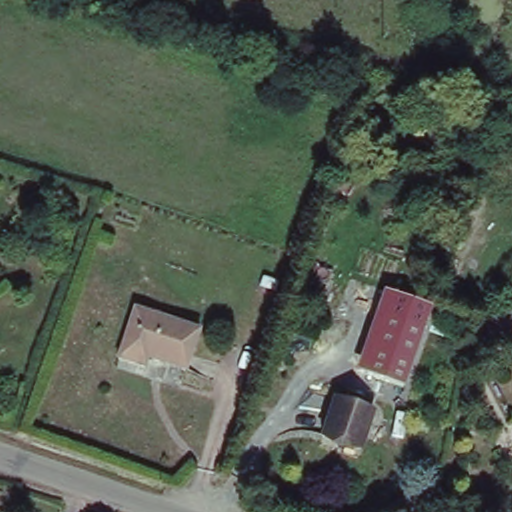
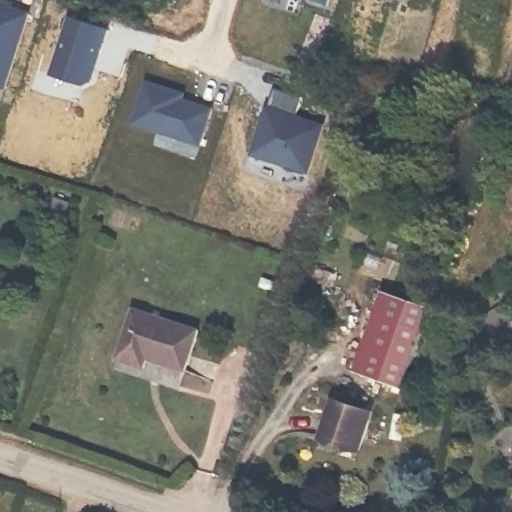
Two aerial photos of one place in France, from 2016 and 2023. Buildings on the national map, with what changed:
new [(326,4),(314,0),(328,0),(326,4)]
new [(29,13),(4,86),(0,86),(0,3),(29,13)]
new [(70,17),(105,29),(89,83),(82,85),(50,74),(70,17)]
new [(145,84),(176,94),(175,100),(210,112),(199,148),(132,125),(145,84)]
new [(274,87),(302,97),(295,117),(322,126),(307,176),(285,169),(286,166),(251,154),(274,87)]
unchanged [(330,272),(328,281),(309,277),(312,266),(330,272)]
unchanged [(403,386),(356,369),(382,289),(432,305),(403,386)]
unchanged [(199,329),(186,365),(150,352),(146,366),(120,354),(136,308),(199,329)]
unchanged [(512,315),(512,325),(489,334),(483,324),(510,311),(512,315)]
unchanged [(374,408),(363,445),(325,433),(336,396),(374,408)]

